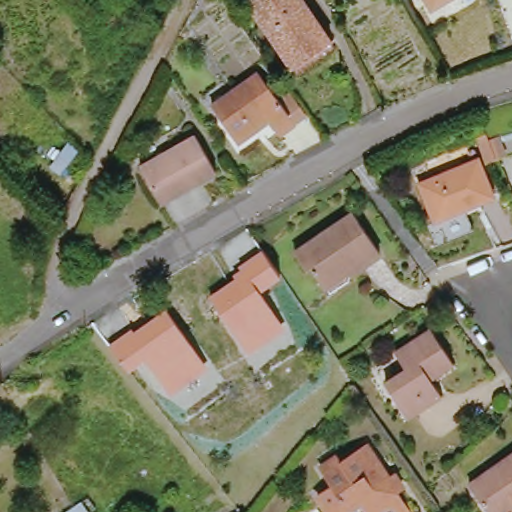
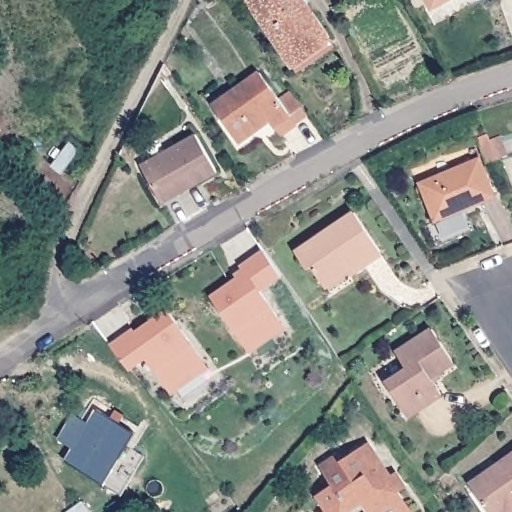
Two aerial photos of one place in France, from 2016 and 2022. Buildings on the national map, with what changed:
unchanged [(202,0),(215,0),(206,6),(202,0)]
unchanged [(293,68),(247,1),(249,0),(304,0),(333,40),(293,68)]
unchanged [(428,0),(450,0),(433,9),(428,0)]
unchanged [(280,139),(270,125),(238,146),(213,110),(259,77),(296,129),(280,139)]
unchanged [(163,204),(141,165),(196,134),(217,172),(163,204)]
unchanged [(503,157),(496,159),(488,140),(496,138),(503,157)]
unchanged [(87,150),(66,178),(55,169),(75,141),(87,150)]
unchanged [(495,197),(435,221),(420,184),(480,158),(495,197)]
unchanged [(381,254),(364,265),(364,267),(351,275),(342,274),(325,285),(313,269),(308,272),(297,254),(356,215),(381,254)]
unchanged [(250,352),(210,294),(237,278),(233,273),(241,269),(238,264),(262,250),(283,278),(260,293),(283,327),(250,352)]
unchanged [(171,394),(145,359),(131,371),(109,344),(131,329),(134,332),(166,310),(207,367),(171,394)]
unchanged [(398,354),(434,330),(455,364),(432,379),(443,396),(409,417),(388,384),(408,371),(398,354)]
new [(65,462),(95,411),(134,432),(103,484),(65,462)]
unchanged [(335,509),(325,494),(339,486),(328,468),(345,457),(348,462),(372,445),(395,478),(391,480),(395,486),(399,484),(418,512),(331,512),(335,509)]
unchanged [(470,481),(512,451),(512,512),(491,512),(470,481)]
unchanged [(90,512),(72,512),(71,511),(83,503),(90,512)]

